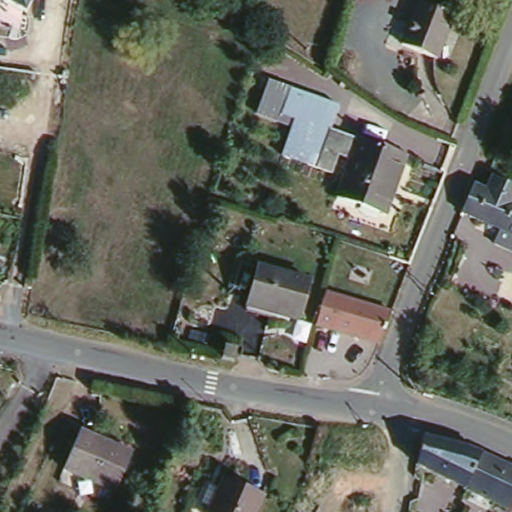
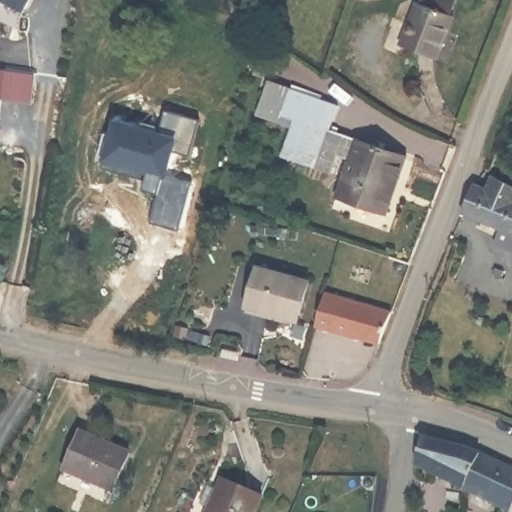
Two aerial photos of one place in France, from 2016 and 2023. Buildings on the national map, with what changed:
unchanged [(30,10),(13,0),(36,0),(30,10)]
unchanged [(405,45),(422,2),(425,3),(426,0),(461,0),(455,15),(457,15),(440,59),(405,45)]
unchanged [(336,196),(342,177),(282,156),(291,127),(256,114),(267,81),(338,105),(329,130),(395,153),(396,150),(406,153),(405,155),(406,155),(386,214),(336,196)]
new [(114,121),(157,134),(164,110),(199,119),(193,141),(112,128),(114,121)]
new [(112,128),(193,141),(189,156),(171,151),(165,175),(191,182),(179,231),(149,224),(157,194),(142,190),(145,181),(101,169),(112,128)]
unchanged [(500,225),(461,207),(473,179),(485,184),(491,170),(512,181),(512,247),(494,239),(500,225)]
unchanged [(276,315),(277,312),(246,304),(257,267),(309,281),(297,321),(276,315)]
unchanged [(320,325),(329,294),(395,312),(383,343),(320,325)]
unchanged [(130,448),(107,498),(57,477),(62,464),(79,426),(130,448)]
unchanged [(475,448),(512,465),(512,498),(510,496),(505,506),(411,459),(417,431),(461,443),(475,448)]
unchanged [(260,512),(213,512),(215,508),(206,505),(214,486),(223,490),(228,479),(266,496),(260,512)]

